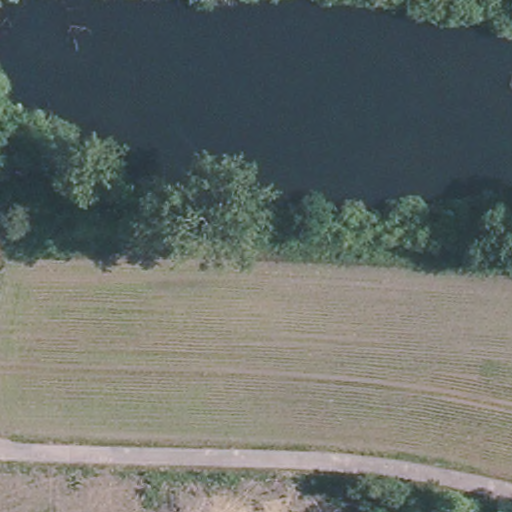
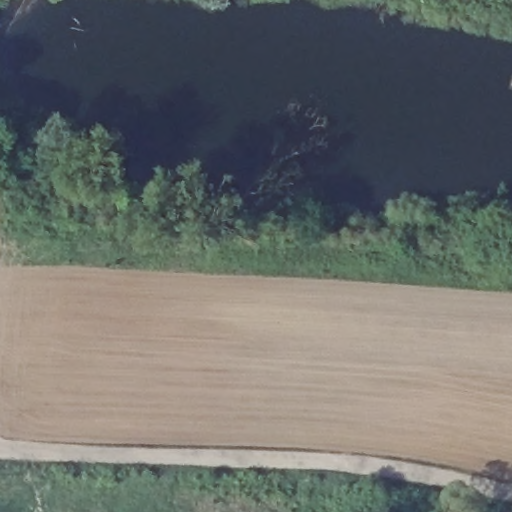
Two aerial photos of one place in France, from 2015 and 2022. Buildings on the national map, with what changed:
[]

